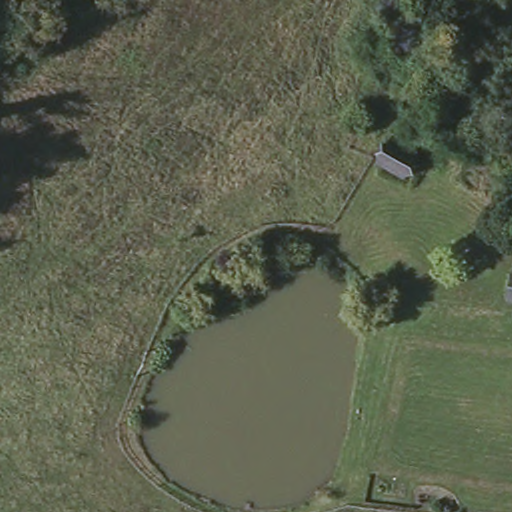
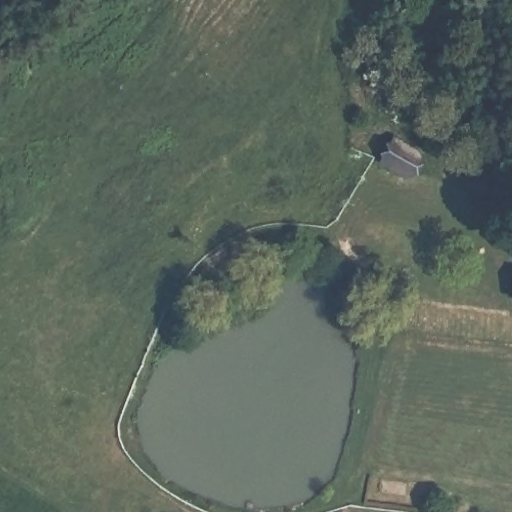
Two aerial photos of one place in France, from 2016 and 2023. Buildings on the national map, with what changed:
unchanged [(420,155),(418,159),(422,165),(413,180),(411,179),(408,183),(376,160),(392,136),(420,155)]
unchanged [(512,271),(512,300),(508,300),(511,270),(512,271)]

